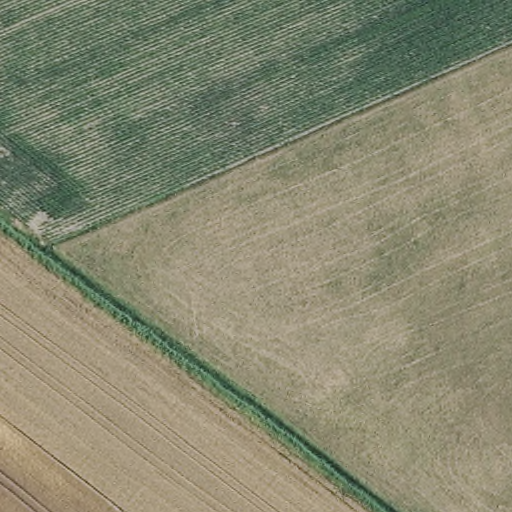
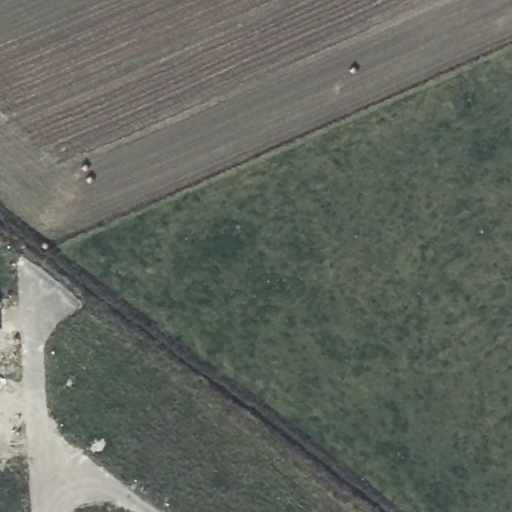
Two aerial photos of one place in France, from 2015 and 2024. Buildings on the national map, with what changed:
[]

